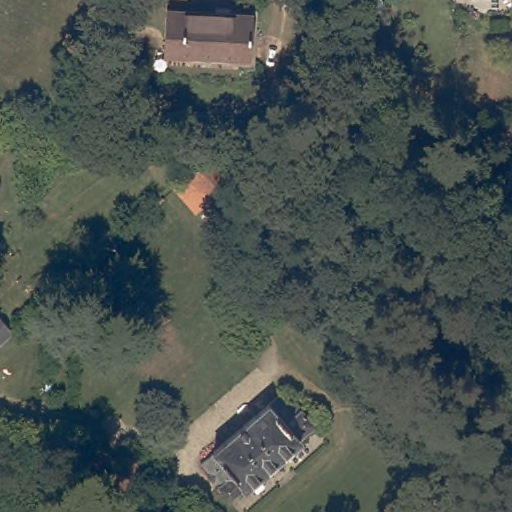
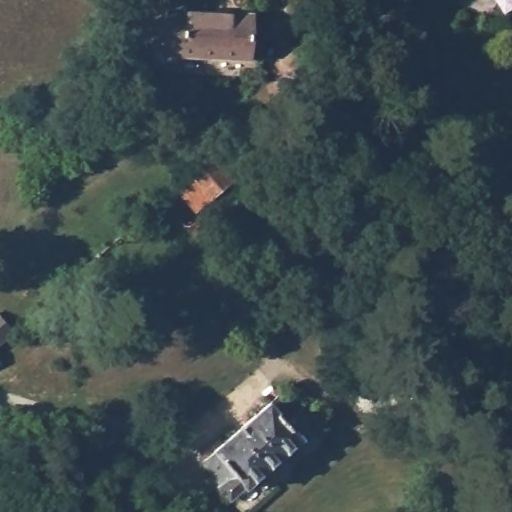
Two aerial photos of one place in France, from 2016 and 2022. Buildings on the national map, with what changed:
unchanged [(164,14),(248,18),(246,63),(162,59),(164,14)]
unchanged [(209,158),(230,182),(207,203),(185,180),(209,158)]
unchanged [(17,334),(7,343),(0,349),(0,315),(17,334)]
unchanged [(266,404),(268,404),(277,396),(294,416),(299,412),(314,429),(228,504),(214,488),(217,485),(199,463),(266,404)]

